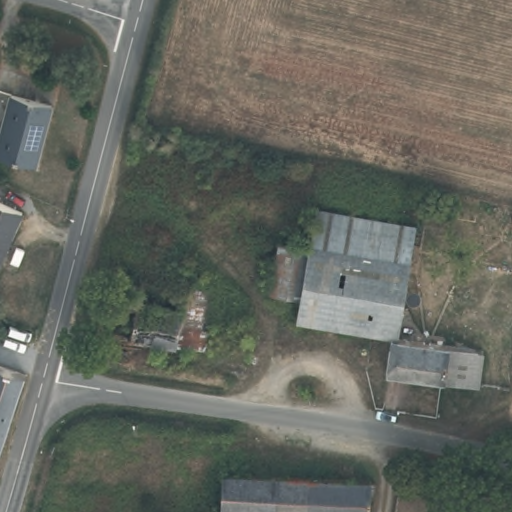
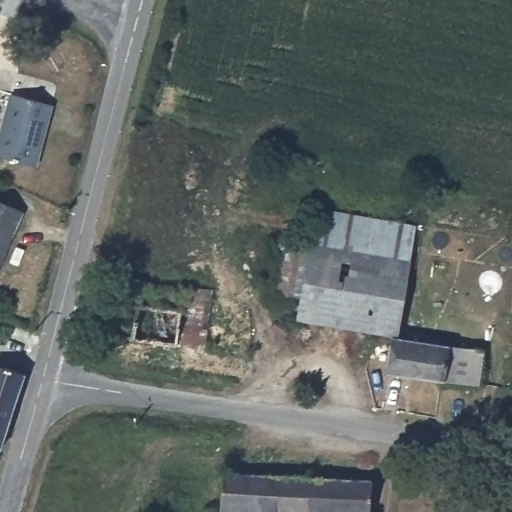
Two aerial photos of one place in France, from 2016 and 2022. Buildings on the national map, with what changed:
unchanged [(0,152),(0,121),(14,86),(52,102),(27,163),(0,152)]
unchanged [(17,205),(0,257),(0,200),(17,205)]
unchanged [(311,238),(317,203),(415,222),(409,257),(311,238)]
unchanged [(396,332),(298,314),(301,293),(310,244),(311,238),(409,257),(396,332)]
unchanged [(301,293),(271,288),(279,239),(310,244),(301,293)]
unchanged [(138,335),(147,280),(217,289),(207,345),(138,335)]
unchanged [(388,370),(393,335),(484,348),(479,384),(388,370)]
unchanged [(0,443),(0,360),(33,370),(10,447),(0,443)]
unchanged [(279,512),(222,512),(223,474),(368,480),(367,512),(346,512),(279,509),(279,512)]
unchanged [(279,512),(279,509),(346,512),(279,512)]

